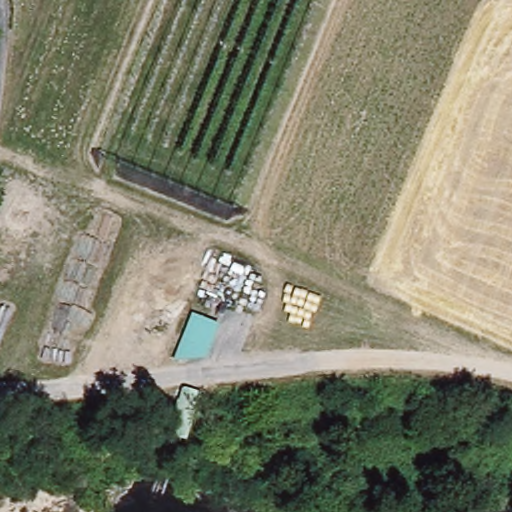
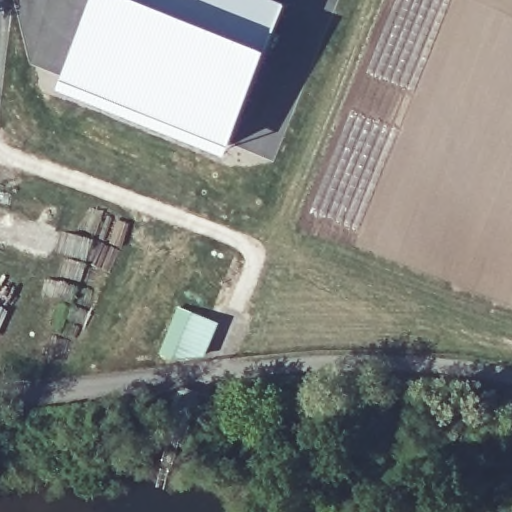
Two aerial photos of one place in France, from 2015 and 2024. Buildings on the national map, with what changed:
new [(96,0),(256,0),(284,11),(226,150),(62,83),(96,0)]
unchanged [(191,311),(220,322),(207,356),(172,359),(191,311)]

